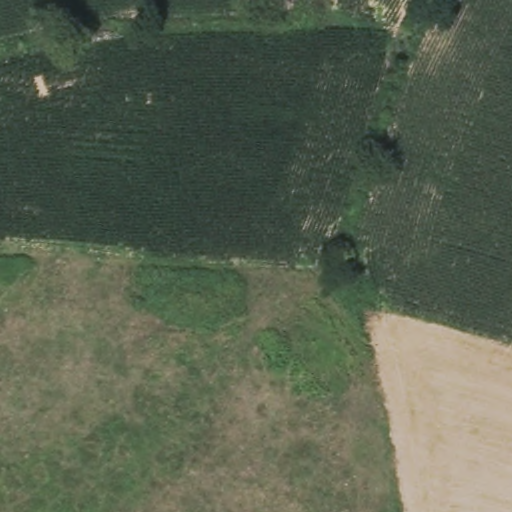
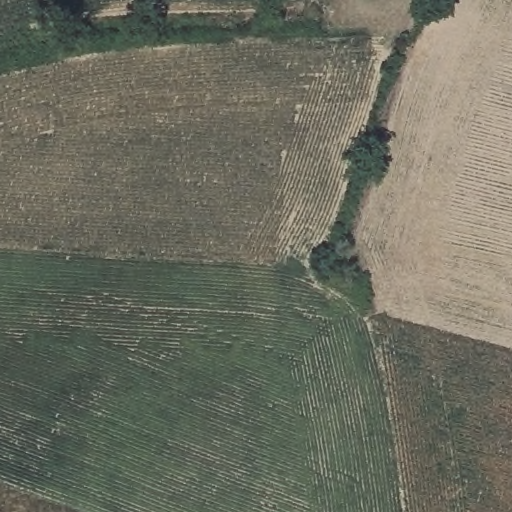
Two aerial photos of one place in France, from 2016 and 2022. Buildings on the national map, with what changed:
[]

